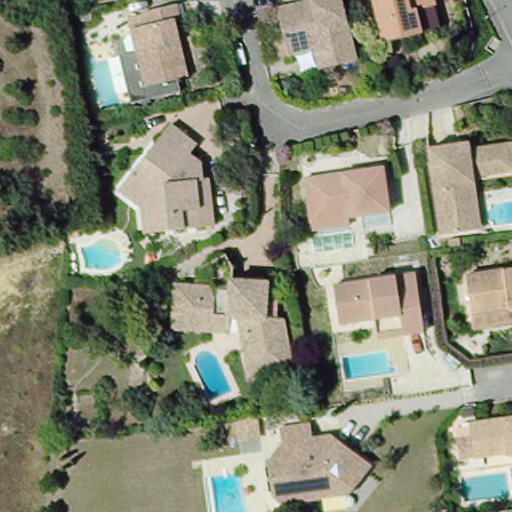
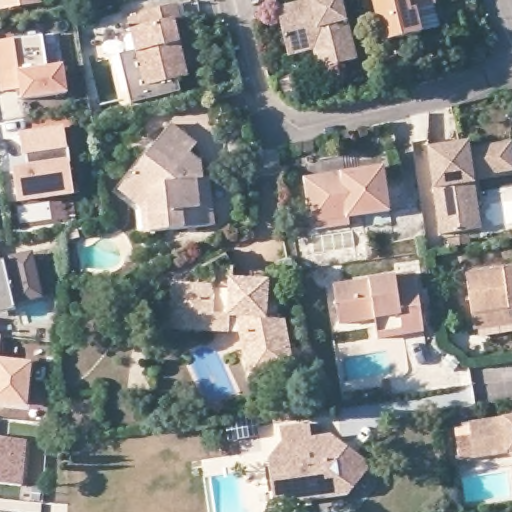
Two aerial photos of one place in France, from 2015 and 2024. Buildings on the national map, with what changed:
new [(2,4),(1,0),(24,0),(2,4)]
unchanged [(312,52),(287,56),(286,50),(277,9),(302,2),(302,0),(342,0),(355,60),(324,67),(315,69),(312,52)]
unchanged [(422,32),(382,42),(372,0),(434,0),(435,5),(440,28),(422,32)]
unchanged [(174,24),(188,81),(142,91),(129,34),(145,30),(142,16),(176,8),(179,23),(174,24)]
new [(42,35),(47,67),(63,65),(68,93),(21,101),(18,90),(2,93),(0,82),(0,41),(42,35)]
unchanged [(144,209),(122,191),(135,174),(175,123),(201,144),(193,151),(206,162),(208,179),(215,178),(216,194),(220,226),(154,233),(148,233),(144,209)]
new [(63,126),(75,195),(19,204),(13,168),(29,166),(27,155),(23,155),(20,132),(63,126)]
unchanged [(441,235),(429,149),(468,143),(469,149),(510,144),(512,157),(512,170),(473,176),(474,183),(480,228),(468,230),(441,235)]
unchanged [(316,231),(315,224),(308,179),(388,166),(394,212),(352,219),(353,226),(316,231)]
new [(44,298),(21,303),(19,295),(12,296),(17,312),(0,315),(0,262),(4,261),(5,266),(12,265),(10,257),(33,252),(44,298)]
unchanged [(466,274),(512,266),(512,325),(474,330),(472,315),(466,274)]
unchanged [(377,340),(374,319),(339,324),(333,285),(414,272),(420,311),(424,332),(377,340)]
unchanged [(228,322),(228,326),(228,336),(173,333),(174,322),(176,290),(230,292),(230,286),(266,288),(265,323),(282,324),(291,374),(248,381),(243,355),(237,323),(228,322)]
new [(32,362),(29,408),(0,405),(0,359),(32,362)]
unchanged [(473,458),(469,424),(512,417),(512,456),(508,454),(473,458)]
unchanged [(346,497),(280,505),(272,499),(267,460),(280,444),(277,428),(308,423),(310,437),(331,434),(340,441),(372,466),(346,497)]
new [(27,433),(22,479),(0,477),(0,430),(27,433)]

